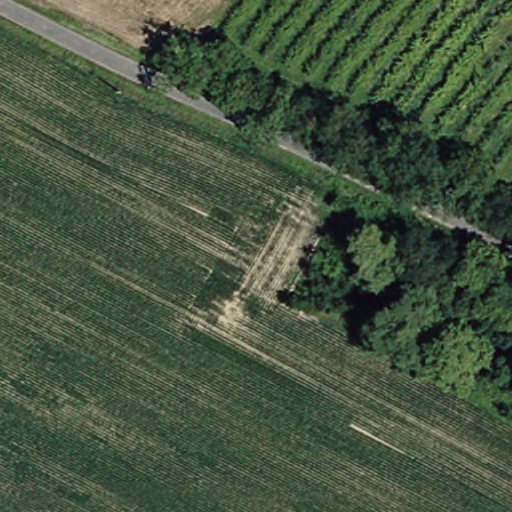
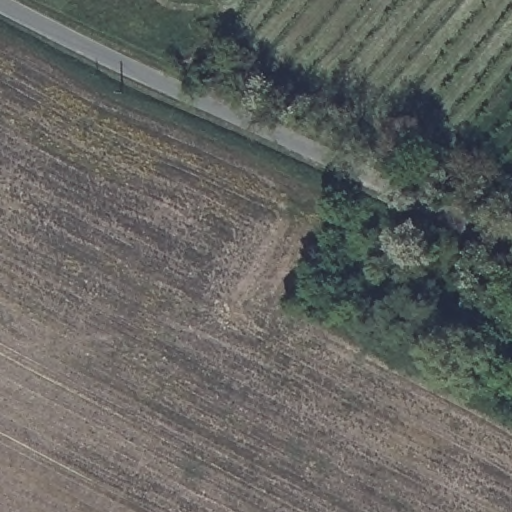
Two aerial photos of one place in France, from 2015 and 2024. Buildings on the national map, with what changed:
unchanged [(464,274),(485,286),(473,312),(450,301),(464,274)]
unchanged [(503,334),(512,315),(512,338),(503,334)]

